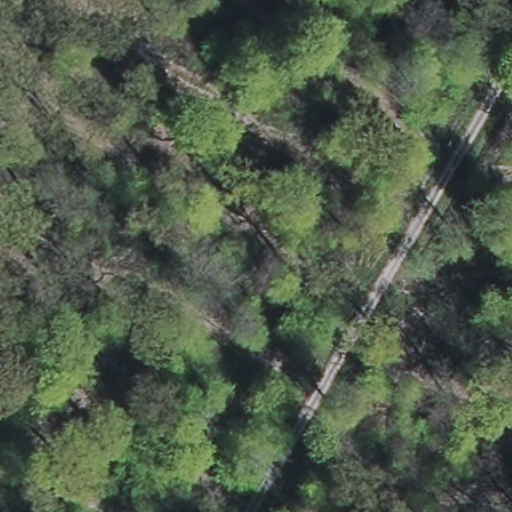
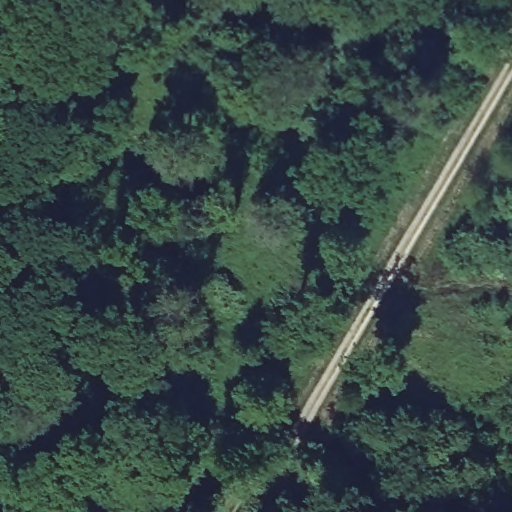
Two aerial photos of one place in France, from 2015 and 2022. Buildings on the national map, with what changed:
[]

